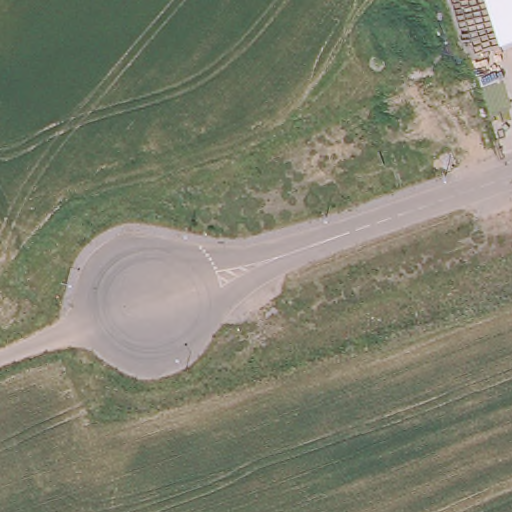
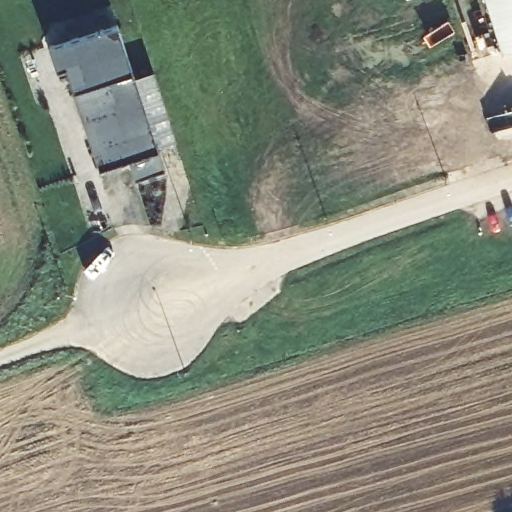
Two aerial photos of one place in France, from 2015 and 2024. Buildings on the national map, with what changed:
unchanged [(512,47),(502,50),(486,0),(512,0),(512,47)]
new [(165,171),(135,181),(128,160),(99,170),(68,75),(59,78),(48,46),(117,24),(165,171)]

